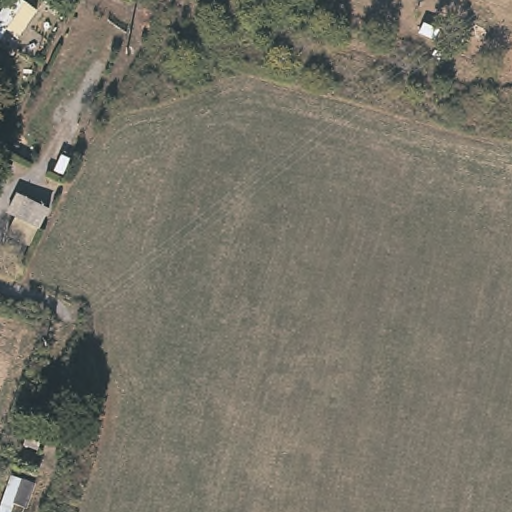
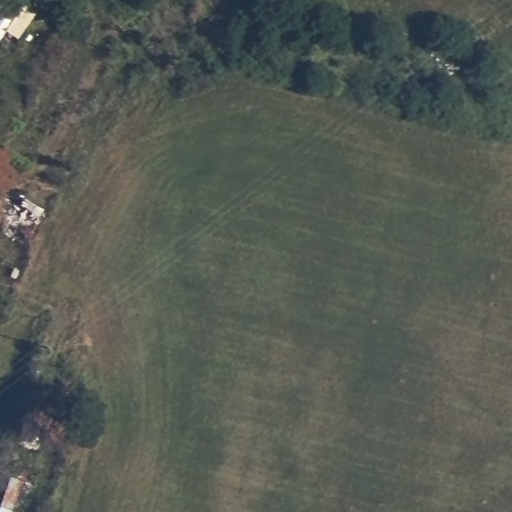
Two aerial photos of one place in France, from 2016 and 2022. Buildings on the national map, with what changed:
unchanged [(26,0),(32,6),(22,15),(36,20),(21,41),(7,33),(0,41),(0,11),(9,0),(26,0)]
unchanged [(7,212),(16,188),(54,207),(40,229),(7,212)]
unchanged [(28,479),(16,512),(0,512),(0,499),(9,471),(28,479)]

